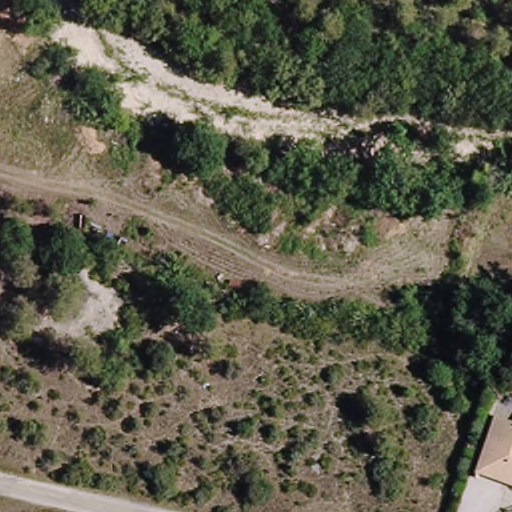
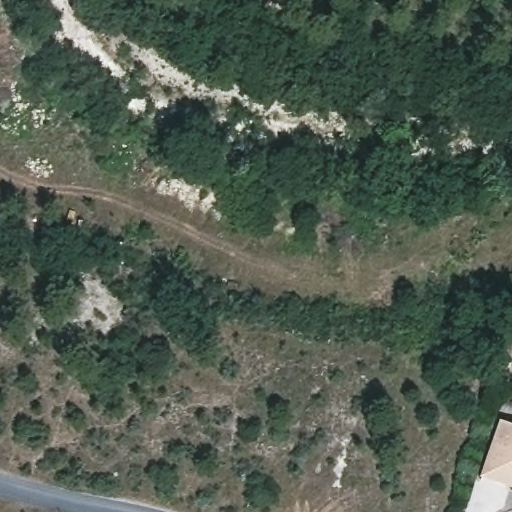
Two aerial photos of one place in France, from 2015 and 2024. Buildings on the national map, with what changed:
unchanged [(477,457),(500,411),(512,417),(512,482),(473,464),(477,457)]

